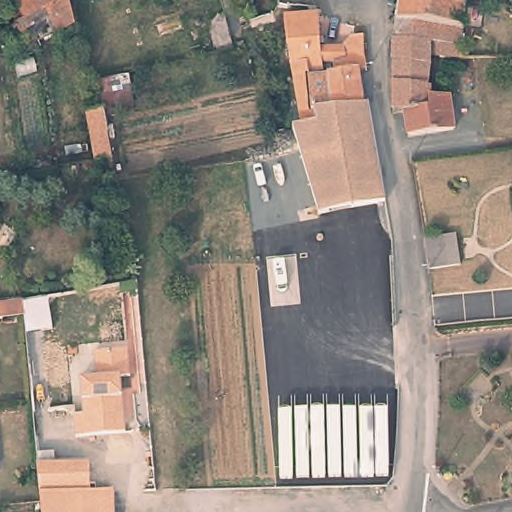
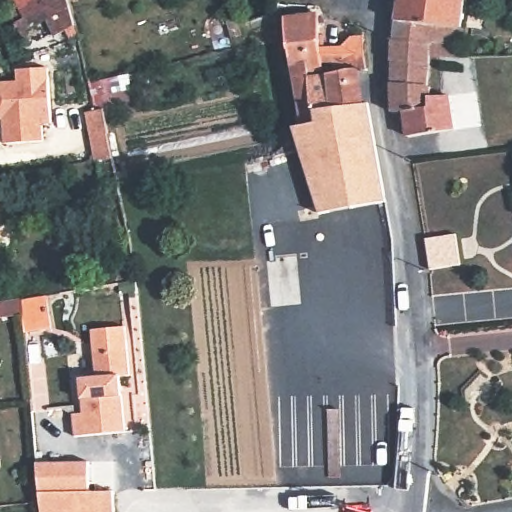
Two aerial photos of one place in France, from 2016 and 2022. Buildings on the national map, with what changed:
unchanged [(69,0),(76,29),(56,39),(45,18),(29,27),(16,7),(11,0),(52,0),(55,5),(66,0),(69,0)]
unchanged [(394,41),(400,0),(464,0),(462,44),(431,43),(394,41)]
unchanged [(284,25),(318,21),(324,76),(293,80),(284,25)]
unchanged [(360,111),(329,116),(324,76),(344,74),(342,54),(350,41),(356,41),(362,41),(365,74),(356,75),(359,105),(360,108),(360,111)]
unchanged [(432,85),(431,97),(449,96),(453,130),(409,136),(406,136),(403,113),(392,113),(392,100),(392,71),(394,41),(431,43),(428,85),(432,85)]
new [(0,120),(0,81),(16,80),(16,69),(50,67),(53,123),(45,123),(45,140),(6,143),(4,120),(0,120)]
unchanged [(86,86),(126,75),(135,105),(105,113),(104,106),(96,107),(86,86)]
unchanged [(318,216),(291,131),(299,129),(293,80),(324,76),(329,116),(360,111),(360,108),(367,107),(376,165),(382,205),(318,216)]
unchanged [(93,112),(101,110),(111,159),(96,161),(85,114),(93,112)]
unchanged [(430,269),(426,238),(428,238),(456,235),(459,266),(434,269),(430,269)]
unchanged [(24,319),(0,322),(0,302),(20,300),(24,319)]
unchanged [(73,414),(83,413),(79,378),(96,377),(93,352),(126,348),(129,375),(119,376),(125,431),(75,436),(73,414)]
unchanged [(90,494),(115,493),(115,512),(41,512),(38,464),(87,463),(90,494)]

